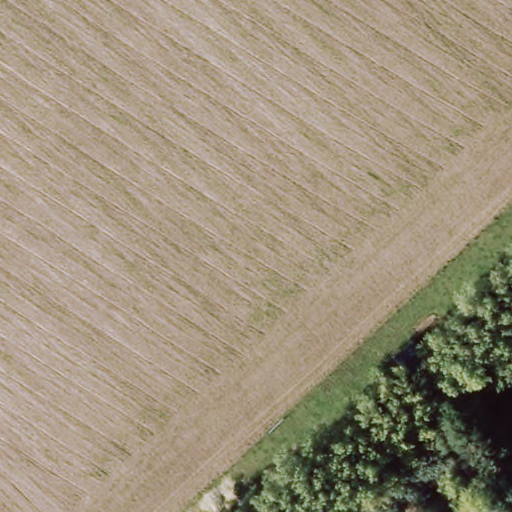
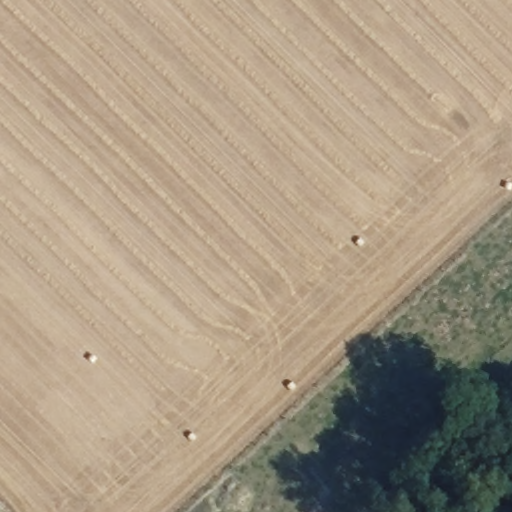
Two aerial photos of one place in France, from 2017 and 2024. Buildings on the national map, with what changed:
unchanged [(430,357),(414,373),(396,355),(414,338),(430,357)]

